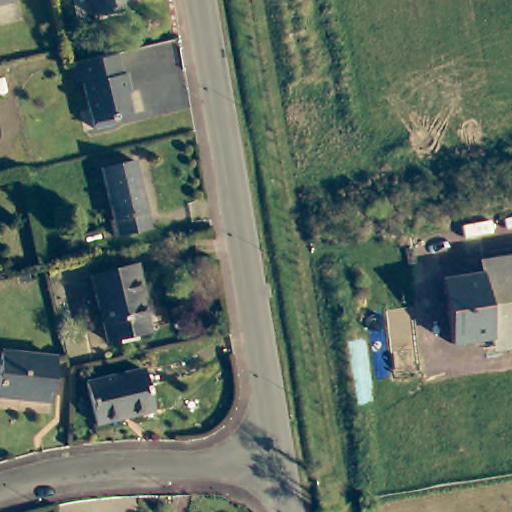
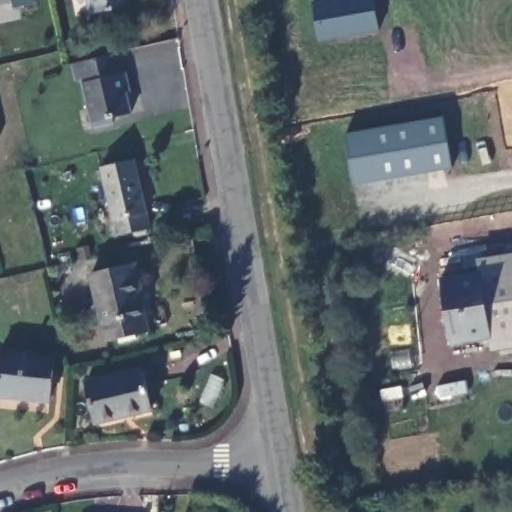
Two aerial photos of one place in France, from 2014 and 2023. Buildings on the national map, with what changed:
unchanged [(16,5),(0,8),(0,0),(15,0),(16,5)]
unchanged [(131,9),(96,17),(92,0),(130,0),(131,9)]
new [(320,43),(313,0),(375,0),(380,32),(320,43)]
unchanged [(129,77),(134,97),(129,98),(134,117),(114,123),(115,129),(97,135),(86,86),(80,87),(75,70),(120,60),(124,79),(129,77)]
new [(444,117),(452,168),(354,185),(346,136),(444,117)]
unchanged [(146,224),(113,231),(101,178),(134,171),(146,224)]
unchanged [(512,256),(512,270),(477,276),(474,262),(512,256)]
unchanged [(142,292),(138,293),(149,333),(107,344),(92,278),(137,268),(142,292)]
unchanged [(512,336),(488,340),(477,276),(512,270),(512,336)]
unchanged [(488,340),(448,347),(437,282),(477,276),(488,340)]
unchanged [(512,349),(490,353),(488,340),(512,336),(512,349)]
unchanged [(49,403),(0,397),(0,367),(2,353),(56,361),(49,403)]
unchanged [(153,415),(96,428),(86,386),(143,371),(153,415)]

